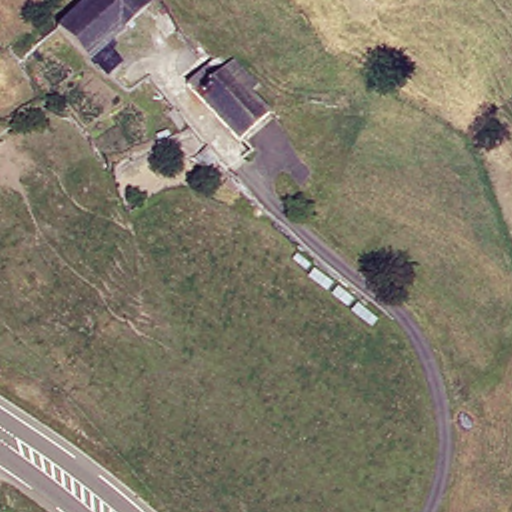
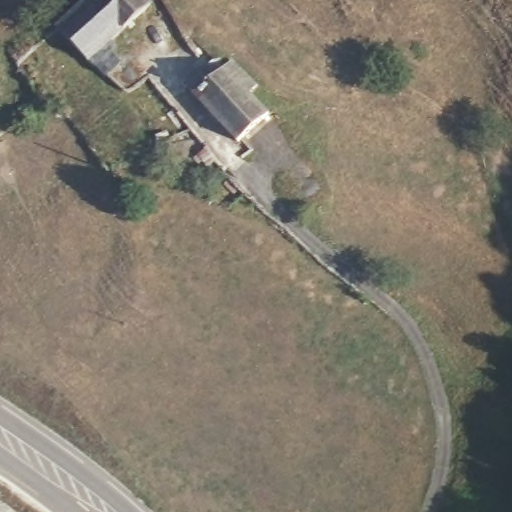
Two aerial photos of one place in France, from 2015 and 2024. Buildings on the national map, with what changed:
unchanged [(86,0),(152,0),(154,3),(108,45),(121,61),(107,75),(59,28),(86,0)]
unchanged [(194,90),(213,70),(222,80),(240,61),(270,90),(261,100),(277,117),(247,145),(194,90)]

